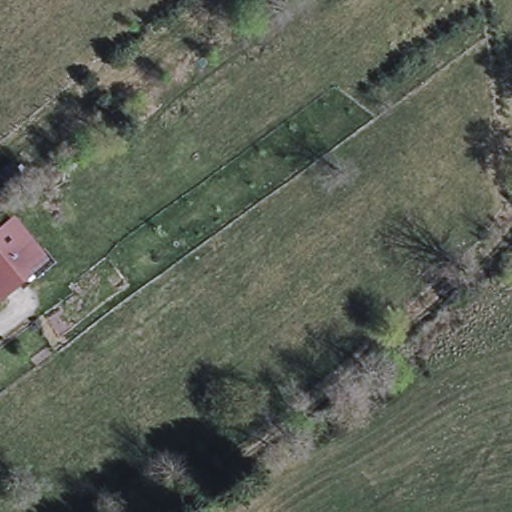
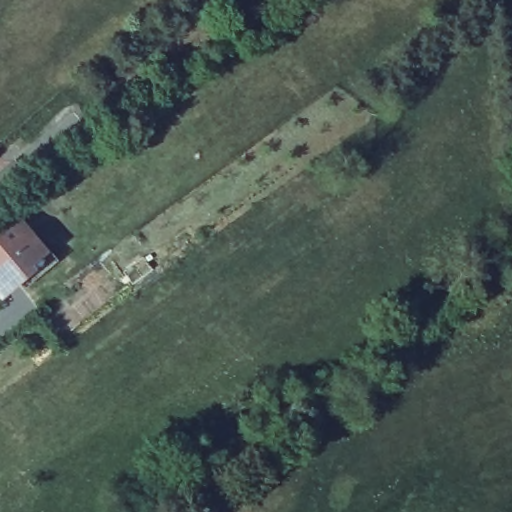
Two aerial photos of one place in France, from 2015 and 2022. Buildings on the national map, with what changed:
unchanged [(18,159),(30,174),(11,190),(0,177),(0,174),(18,159)]
unchanged [(0,244),(0,243),(0,236),(15,224),(42,256),(14,280),(17,285),(0,300),(0,244)]

